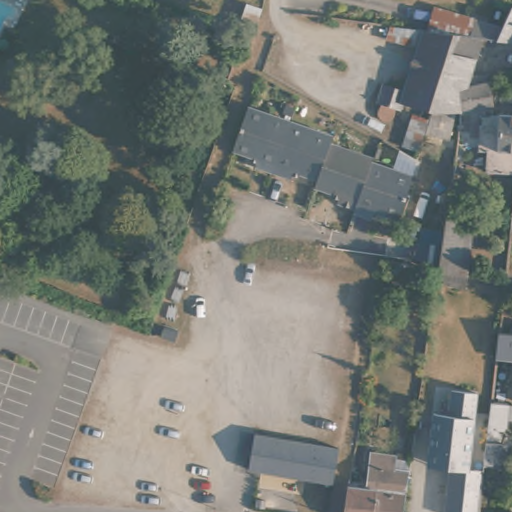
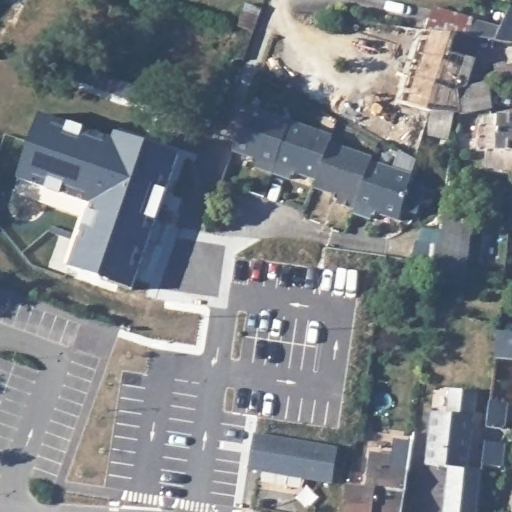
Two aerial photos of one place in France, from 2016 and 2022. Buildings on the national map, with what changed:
unchanged [(244,2),(258,7),(251,30),(236,25),(244,2)]
unchanged [(420,147),(404,144),(415,103),(404,102),(403,107),(399,107),(397,114),(393,117),(388,119),(383,117),(381,114),(383,102),(381,101),(386,84),(406,88),(418,43),(390,39),(391,25),(421,29),(432,30),(438,7),(505,26),(512,11),(512,41),(503,40),(499,48),(485,47),(482,55),(476,72),(490,73),(491,85),(494,103),(463,110),(462,110),(455,109),(450,134),(426,129),(420,147)]
new [(64,266),(84,207),(15,183),(39,114),(112,139),(115,133),(179,156),(134,292),(64,266)]
unchanged [(489,151),(481,149),(481,117),(500,114),(512,114),(512,171),(490,170),(489,151)]
unchanged [(290,127),(274,179),(257,174),(260,166),(235,158),(247,122),(250,115),(290,127)]
unchanged [(290,127),(333,141),(330,148),(318,185),(293,177),(290,185),(274,179),(290,127)]
unchanged [(339,209),(341,201),(316,192),(318,185),(330,148),(373,162),(372,166),(356,215),(339,209)]
unchanged [(396,224),(372,216),(370,222),(355,218),(356,215),(372,166),(411,180),(396,224)]
unchanged [(467,283),(440,280),(450,220),(451,205),(474,208),(473,222),(473,231),(467,283)]
unchanged [(502,331),(512,331),(512,356),(499,355),(502,331)]
unchanged [(473,412),(487,414),(488,401),(503,403),(501,427),(498,427),(497,442),(502,442),(500,464),(481,462),(477,512),(444,512),(448,468),(427,467),(433,413),(448,415),(450,391),(475,393),(473,412)]
unchanged [(341,448),(334,485),(246,468),(255,433),(341,448)]
unchanged [(346,483),(366,486),(370,452),(392,454),(392,457),(408,460),(401,512),(342,512),(346,483)]

